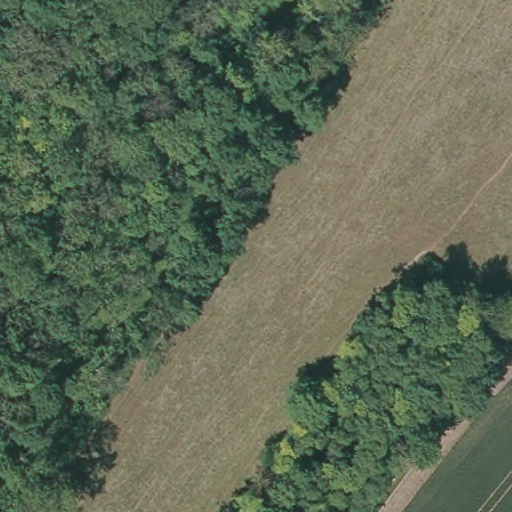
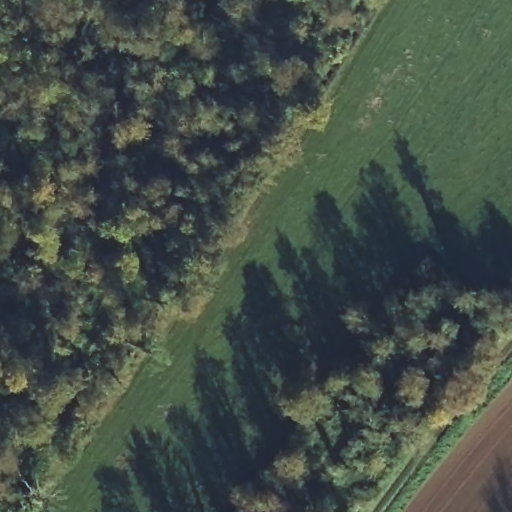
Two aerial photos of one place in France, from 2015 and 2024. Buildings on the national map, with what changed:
unchanged [(339,400),(352,411),(344,425),(327,417),(339,400)]

